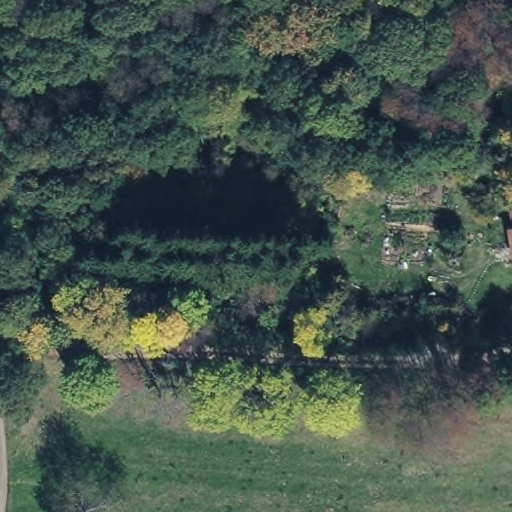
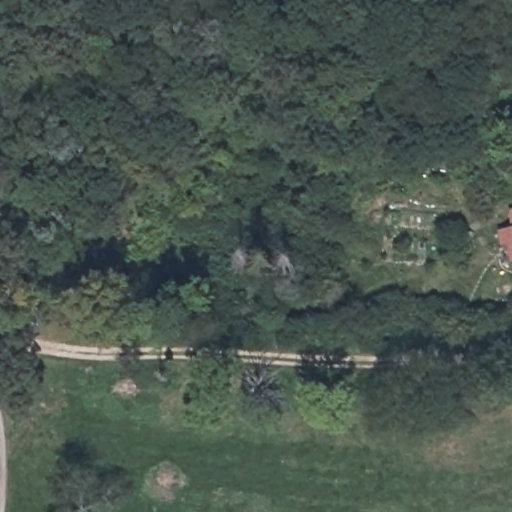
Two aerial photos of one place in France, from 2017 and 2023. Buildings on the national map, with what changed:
unchanged [(503,231),(512,231),(512,271),(507,271),(503,231)]

